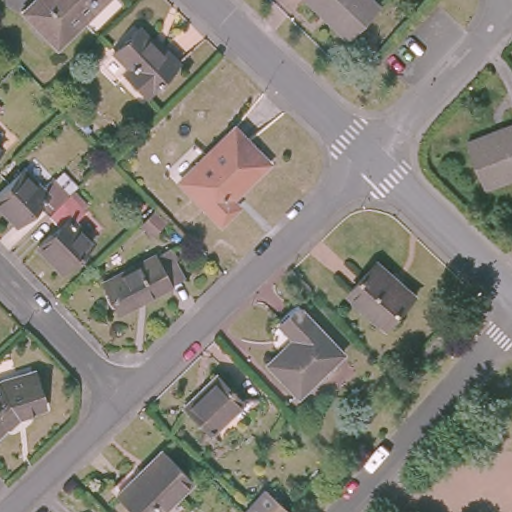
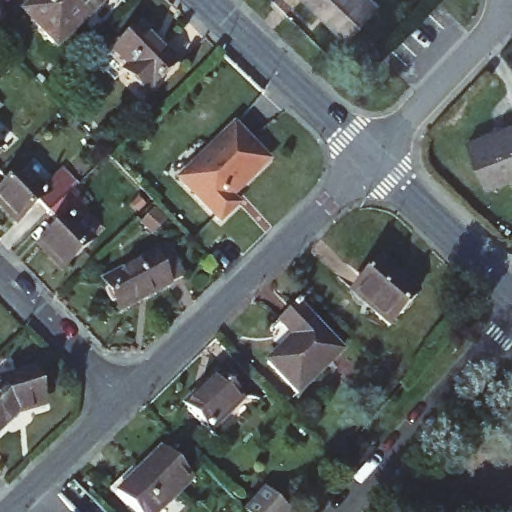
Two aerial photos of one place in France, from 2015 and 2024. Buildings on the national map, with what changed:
unchanged [(20,7),(29,0),(99,0),(54,41),(20,7)]
unchanged [(379,5),(348,40),(325,18),(327,16),(308,0),(373,0),(379,5)]
unchanged [(144,96),(122,74),(130,67),(113,50),(135,28),(174,66),(144,96)]
unchanged [(467,142),(512,124),(512,179),(485,189),(467,142)]
unchanged [(242,204),(225,221),(190,185),(185,179),(199,164),(238,126),(272,160),(241,191),(235,197),(242,204)]
unchanged [(33,204),(13,222),(0,209),(0,186),(17,170),(37,190),(49,178),(64,193),(42,214),(33,204)]
unchanged [(80,211),(67,222),(87,243),(58,269),(33,244),(53,225),(42,214),(64,193),(80,211)]
unchanged [(173,281),(109,315),(95,287),(159,253),(173,281)]
unchanged [(377,262),(416,297),(390,327),(352,292),(377,262)]
unchanged [(292,339),(277,323),(295,305),(340,352),(295,394),(267,364),(292,339)]
unchanged [(18,404),(0,420),(0,373),(29,366),(38,398),(18,404)]
unchanged [(215,376),(241,403),(210,433),(184,407),(215,376)]
unchanged [(190,482),(161,512),(133,512),(117,495),(162,451),(190,482)]
unchanged [(289,512),(244,512),(265,490),(289,512)]

